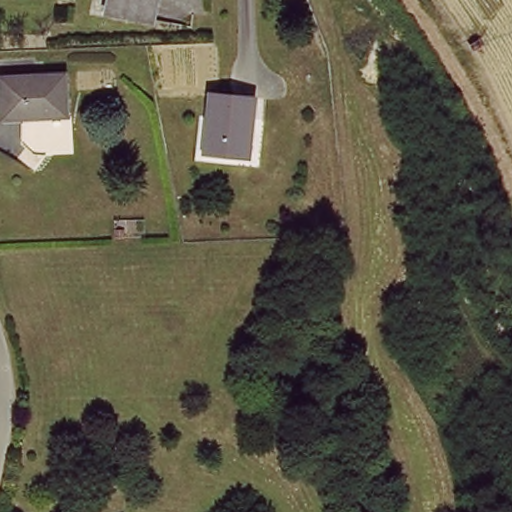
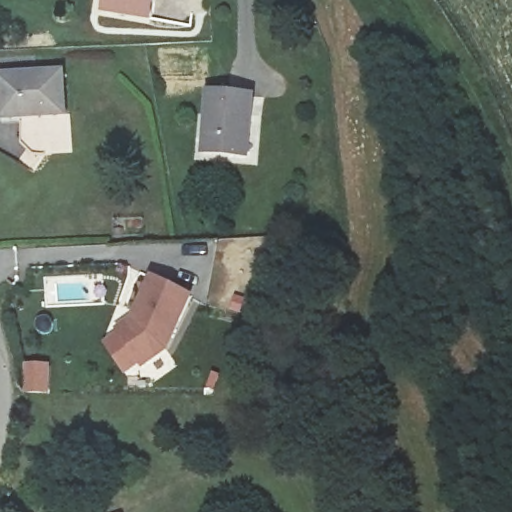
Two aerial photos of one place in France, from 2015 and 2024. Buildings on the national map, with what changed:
unchanged [(159,22),(108,18),(109,0),(160,0),(159,22)]
unchanged [(73,147),(26,149),(25,121),(0,121),(0,77),(75,75),(73,147)]
unchanged [(248,97),(252,156),(216,160),(212,99),(248,97)]
new [(168,352),(142,371),(138,366),(124,375),(103,343),(117,335),(115,331),(132,318),(151,278),(194,299),(168,352)]

